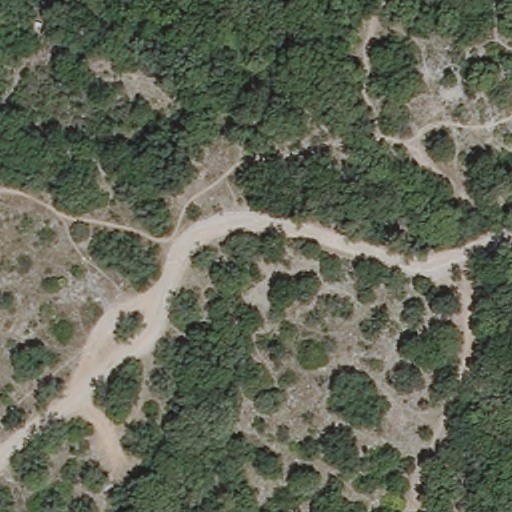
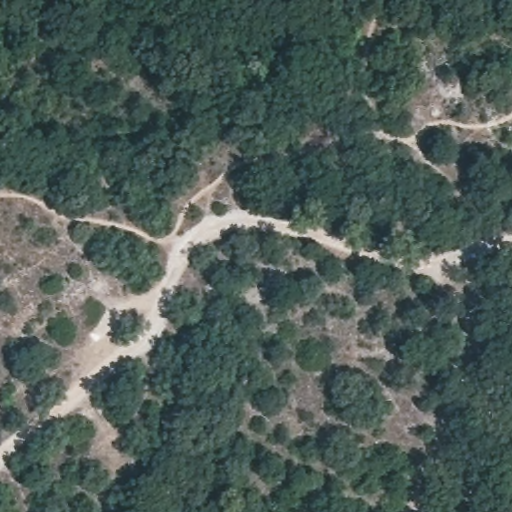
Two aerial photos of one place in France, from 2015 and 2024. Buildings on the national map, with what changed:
[]

